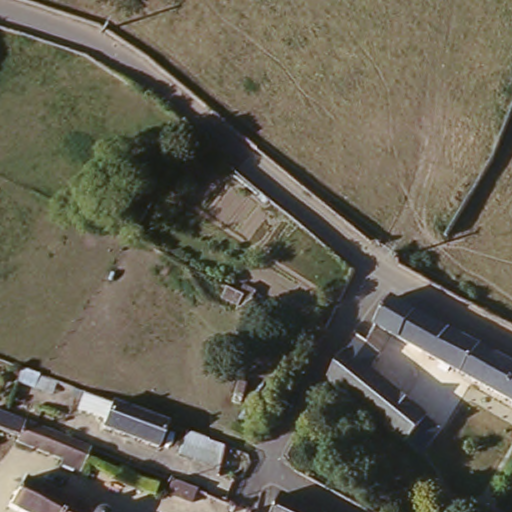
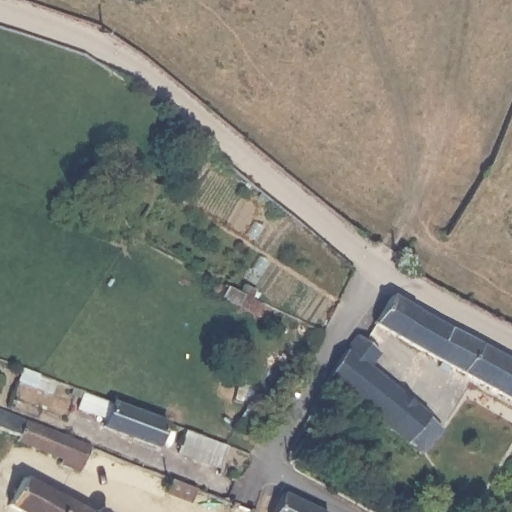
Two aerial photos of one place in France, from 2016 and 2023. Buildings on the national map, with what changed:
unchanged [(375,287),(508,359),(512,361),(512,399),(359,313),(375,287)]
unchanged [(374,349),(362,365),(435,425),(415,449),(323,374),(353,332),(359,337),(374,349)]
unchanged [(33,387),(19,382),(23,371),(32,375),(38,377),(33,387)]
unchanged [(156,452),(105,432),(106,426),(89,419),(94,402),(151,423),(166,428),(156,452)]
unchanged [(80,472),(59,465),(61,460),(17,442),(19,437),(0,430),(0,411),(25,421),(91,447),(90,450),(80,472)]
unchanged [(220,474),(178,459),(186,437),(227,452),(220,474)]
unchanged [(194,497),(169,487),(173,476),(199,487),(194,497)]
unchanged [(13,488),(56,512),(0,512),(13,488)]
unchanged [(302,512),(272,512),(277,500),(302,512)]

